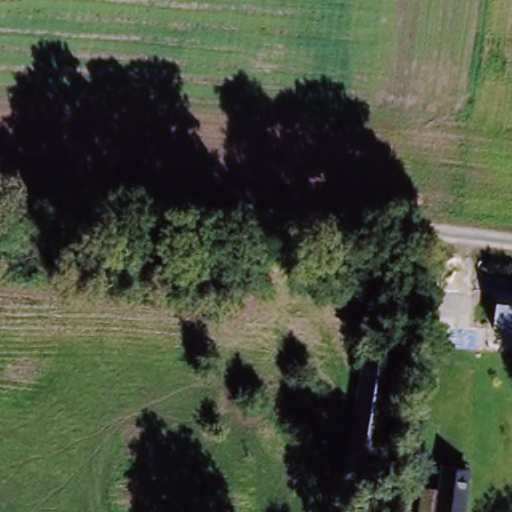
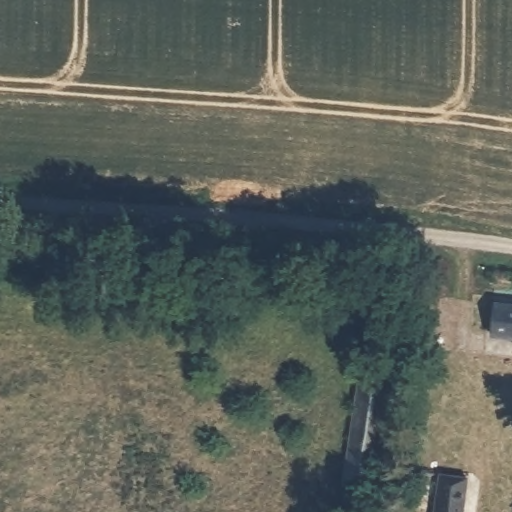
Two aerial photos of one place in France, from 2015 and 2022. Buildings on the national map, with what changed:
unchanged [(512,307),(512,340),(495,338),(498,306),(512,307)]
unchanged [(375,512),(358,512),(342,510),(357,392),(390,395),(375,512)]
unchanged [(465,512),(420,512),(422,492),(440,495),(442,476),(469,480),(465,512)]

